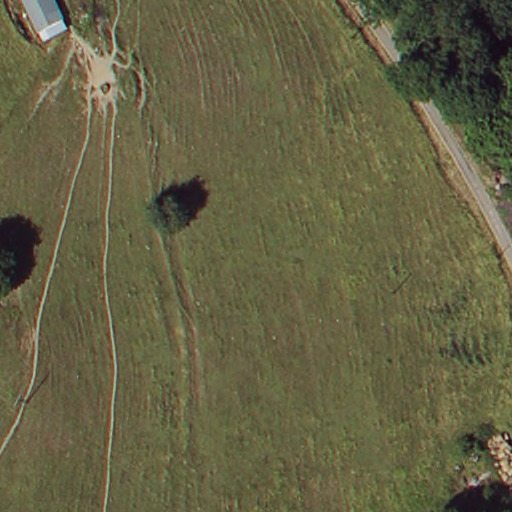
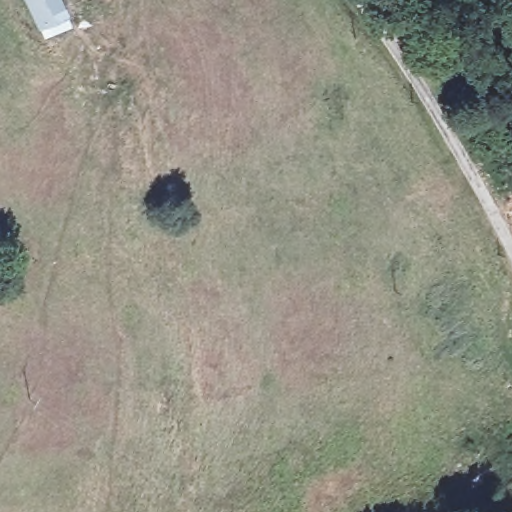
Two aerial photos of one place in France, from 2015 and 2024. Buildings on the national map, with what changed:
unchanged [(41,20),(28,0),(59,0),(66,12),(72,21),(65,23),(47,30),(41,20)]

